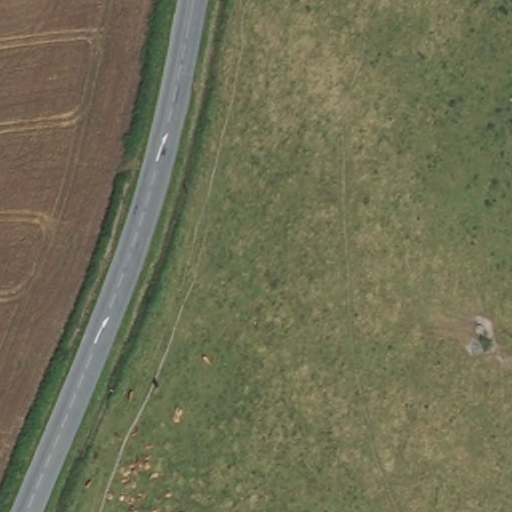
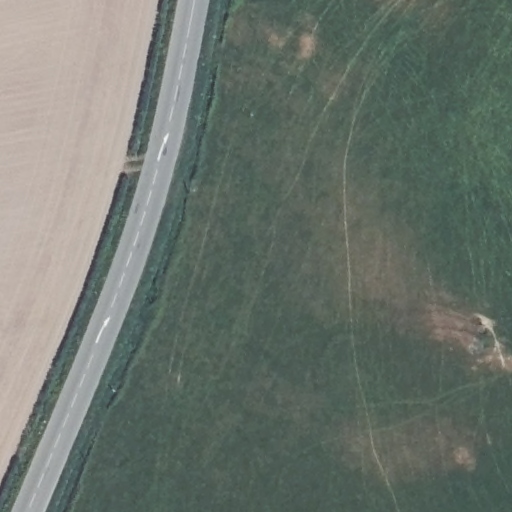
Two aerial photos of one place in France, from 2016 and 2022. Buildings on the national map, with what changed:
[]

